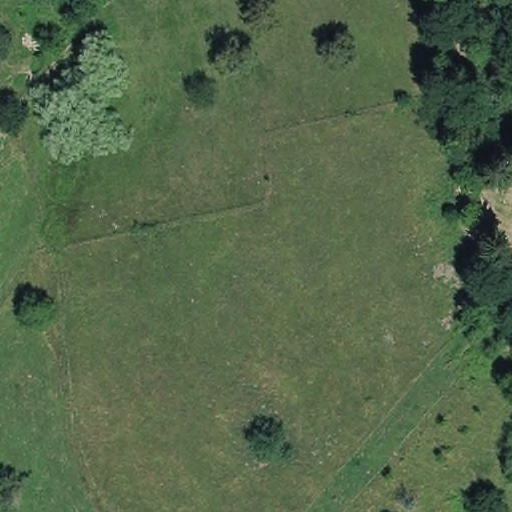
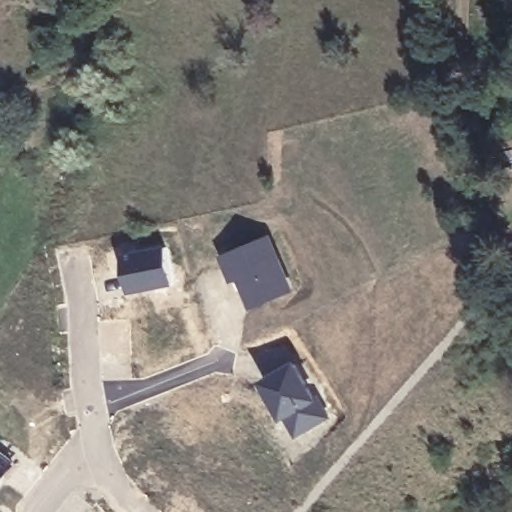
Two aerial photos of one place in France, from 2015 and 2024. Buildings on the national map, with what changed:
new [(268,233),(292,290),(250,307),(237,280),(230,282),(218,254),(268,233)]
new [(162,245),(170,285),(128,293),(120,252),(162,245)]
new [(292,359),(329,417),(295,437),(259,377),(292,359)]
new [(0,484),(0,448),(17,462),(0,484)]

